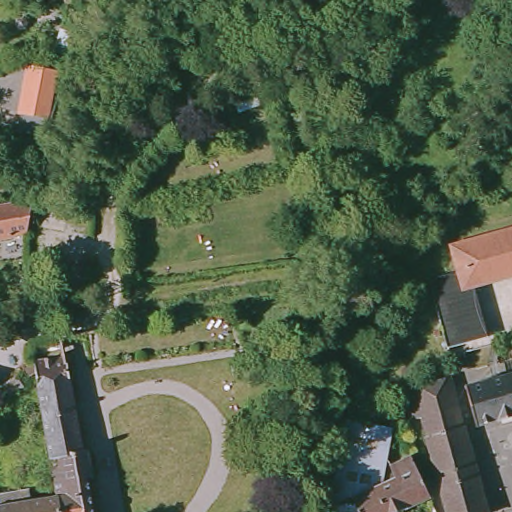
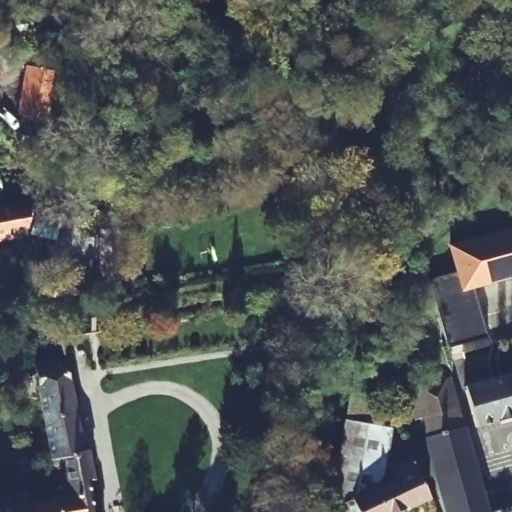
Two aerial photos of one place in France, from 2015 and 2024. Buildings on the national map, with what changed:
unchanged [(45,120),(16,114),(27,65),(56,71),(45,120)]
unchanged [(22,235),(0,239),(0,203),(29,199),(28,204),(22,235)]
unchanged [(469,281),(482,331),(442,343),(424,274),(451,266),(445,241),(512,223),(512,269),(469,281)]
unchanged [(64,316),(36,321),(34,300),(63,299),(64,316)]
unchanged [(48,476),(31,374),(26,377),(20,369),(29,362),(61,356),(78,450),(83,449),(88,479),(83,481),(88,512),(59,512),(56,494),(52,495),(48,476)]
unchanged [(512,367),(512,408),(471,419),(461,381),(512,367)]
unchanged [(5,390),(0,384),(0,380),(11,371),(18,380),(5,390)]
unchanged [(422,416),(409,419),(402,390),(451,378),(458,406),(422,416)]
unchanged [(331,486),(351,384),(376,388),(373,418),(389,422),(381,471),(356,483),(354,479),(348,482),(362,512),(328,512),(329,503),(331,486)]
unchanged [(446,512),(422,416),(458,406),(485,512),(446,512)]
unchanged [(362,512),(348,482),(354,479),(356,483),(381,471),(392,467),(389,462),(411,452),(428,488),(430,492),(387,512),(362,512)]
unchanged [(23,500),(52,495),(56,494),(59,512),(0,512),(0,495),(22,491),(23,500)]

